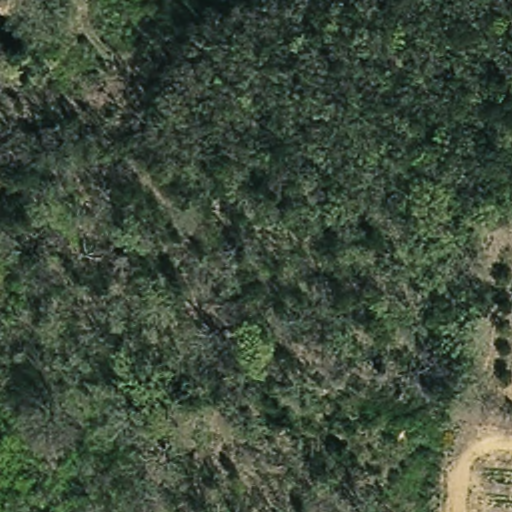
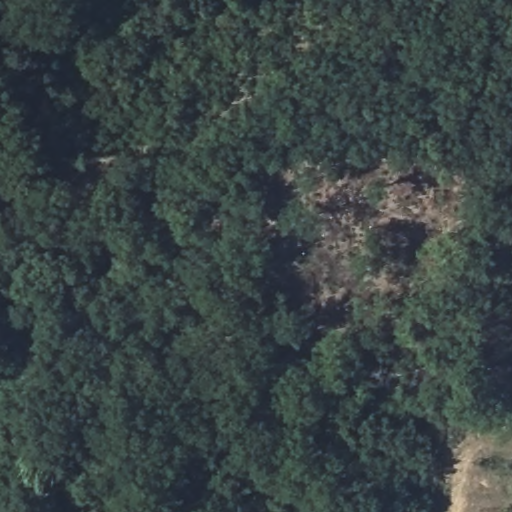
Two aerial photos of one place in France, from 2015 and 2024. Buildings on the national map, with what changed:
[]

